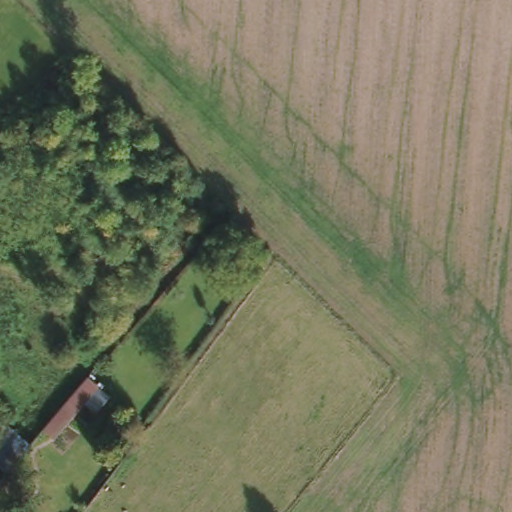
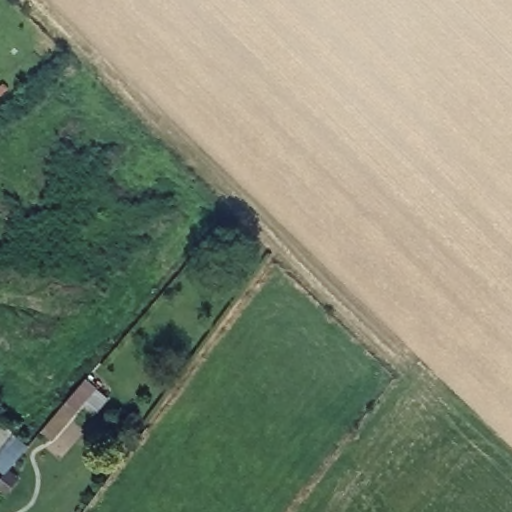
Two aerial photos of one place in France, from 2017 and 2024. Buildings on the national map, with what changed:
unchanged [(90,376),(100,384),(54,438),(45,429),(90,376)]
unchanged [(19,432),(32,444),(8,472),(0,465),(0,432),(9,423),(19,432)]

